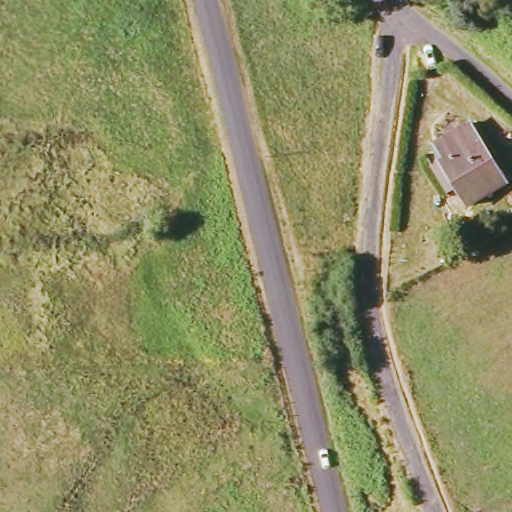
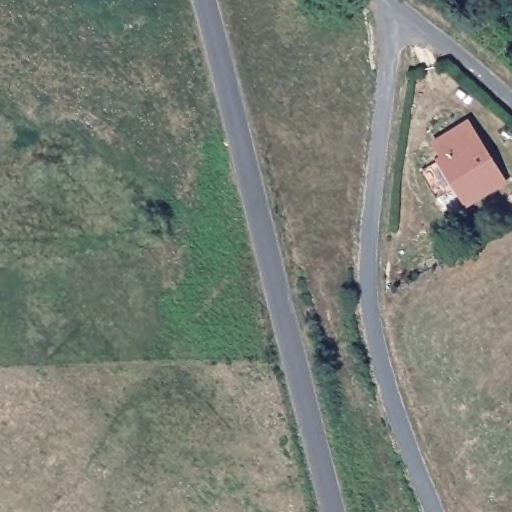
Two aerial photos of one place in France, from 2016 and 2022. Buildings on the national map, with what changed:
unchanged [(467,120),(505,183),(465,206),(437,160),(440,158),(431,140),(467,120)]

